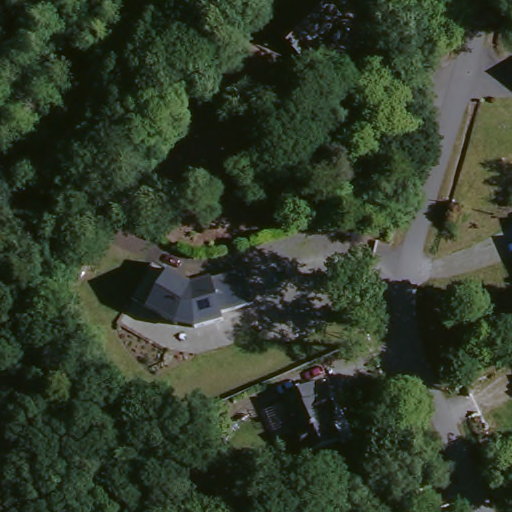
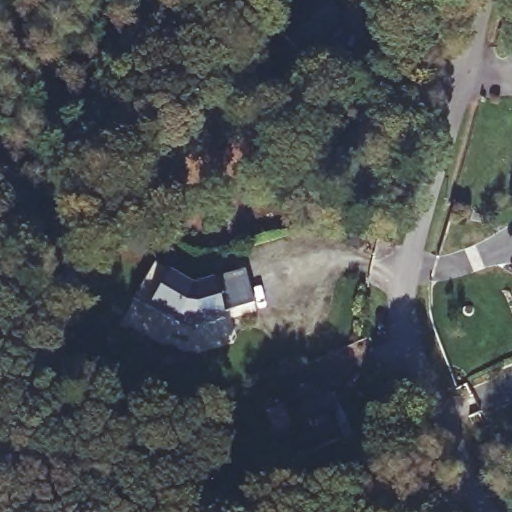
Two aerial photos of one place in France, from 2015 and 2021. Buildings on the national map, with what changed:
unchanged [(315,39),(322,46),(307,60),(270,23),(292,0),(324,0),(339,15),(315,39)]
unchanged [(403,23),(374,9),(378,0),(412,0),(414,1),(403,23)]
unchanged [(180,113),(165,100),(181,82),(195,95),(180,113)]
unchanged [(192,285),(244,269),(254,303),(222,313),(224,320),(196,329),(178,326),(133,305),(152,266),(192,285)]
unchanged [(338,441),(303,458),(281,412),(285,410),(279,398),(311,383),(316,395),(322,393),(331,411),(325,414),(338,441)]
unchanged [(241,512),(219,512),(216,504),(236,497),(241,512)]

